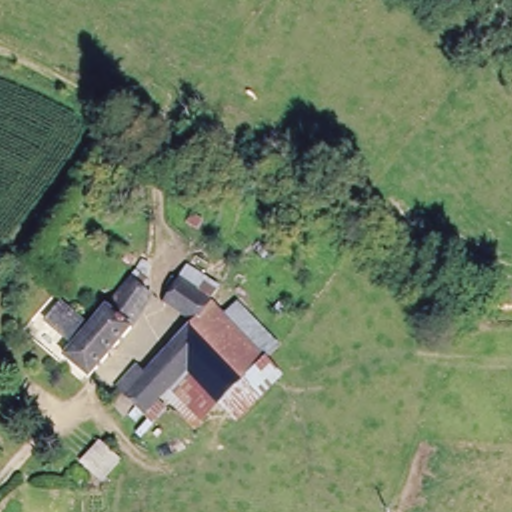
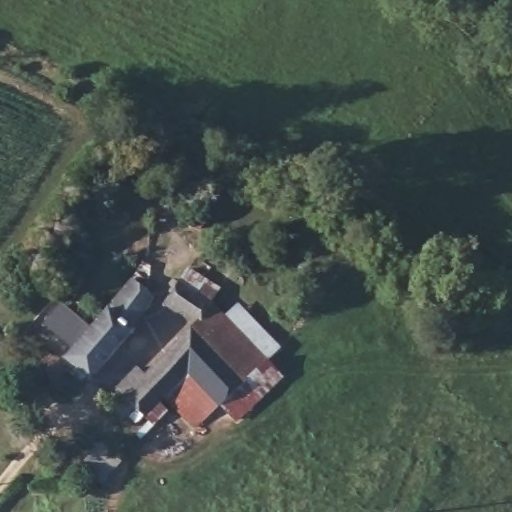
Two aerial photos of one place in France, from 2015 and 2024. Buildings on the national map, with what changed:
unchanged [(197,319),(164,294),(167,290),(159,284),(167,272),(176,279),(183,269),(185,267),(216,286),(207,295),(214,302),(197,319)]
unchanged [(86,376),(59,356),(70,343),(38,318),(50,303),(83,327),(125,277),(145,295),(86,376)]
unchanged [(270,358),(214,302),(230,287),(282,342),(270,358)]
unchanged [(247,380),(194,322),(197,319),(214,302),(270,358),(247,380)]
unchanged [(175,389),(148,414),(119,379),(138,360),(147,367),(194,322),(247,380),(270,358),(283,373),(237,417),(221,400),(202,415),(175,389)]
unchanged [(89,485),(69,468),(86,447),(106,463),(89,485)]

